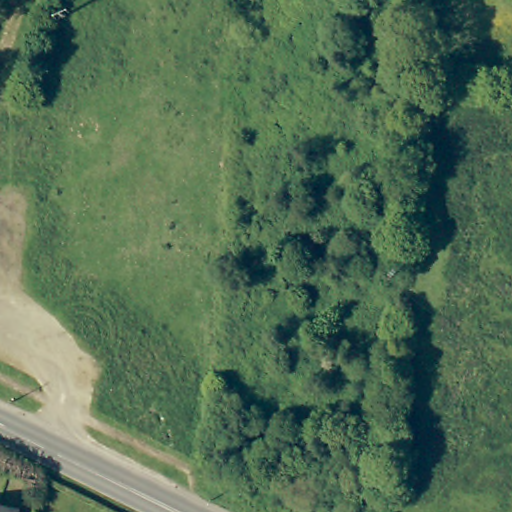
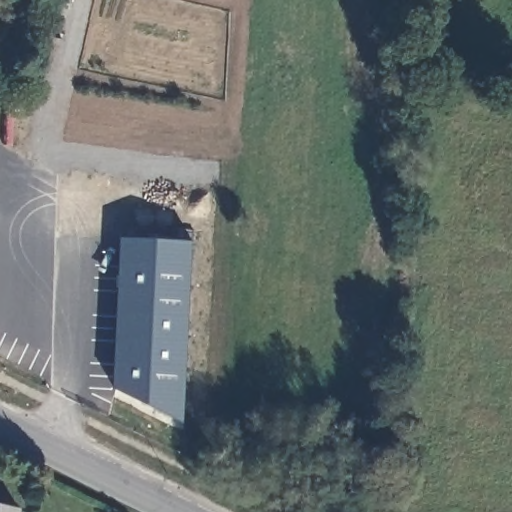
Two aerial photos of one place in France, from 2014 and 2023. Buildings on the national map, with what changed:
new [(113,389),(120,239),(192,242),(184,423),(113,389)]
unchanged [(20,508),(20,512),(0,512),(0,503),(20,508)]

